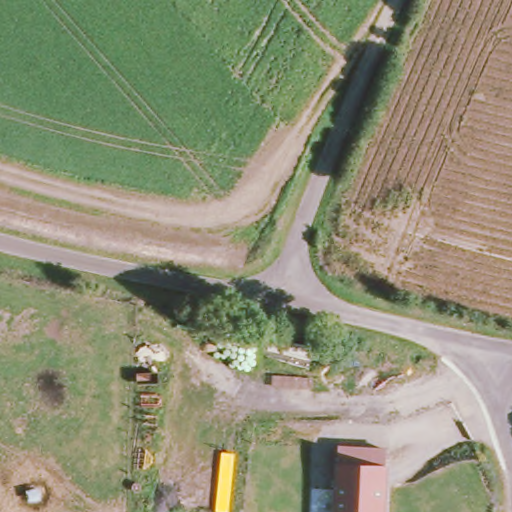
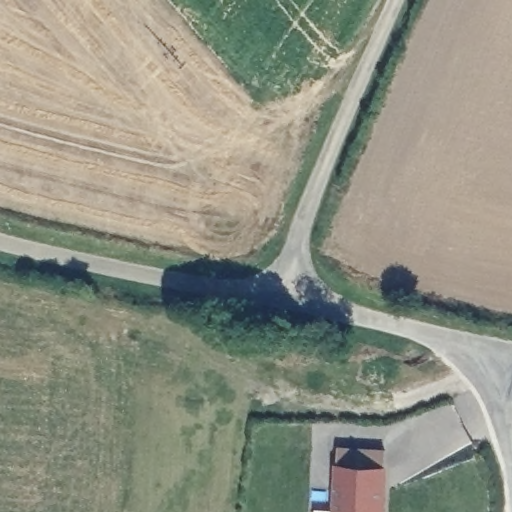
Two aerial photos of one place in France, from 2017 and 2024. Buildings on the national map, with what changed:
unchanged [(337,482),(338,466),(385,468),(385,484),(383,512),(335,512),(337,482)]

